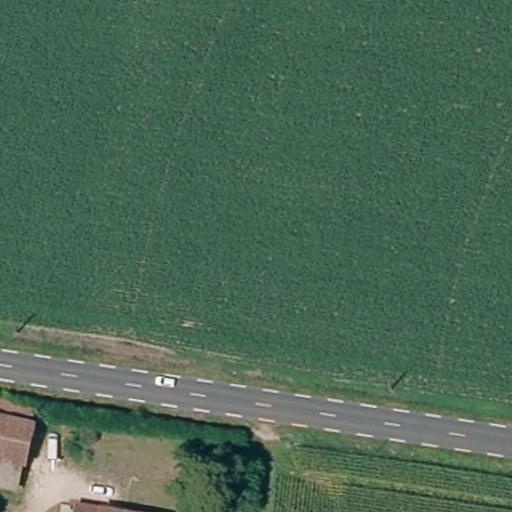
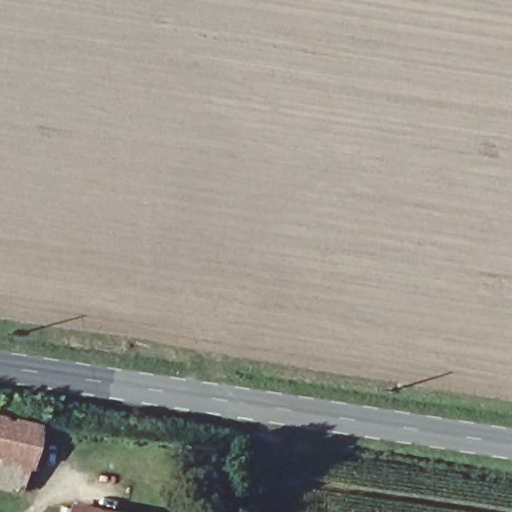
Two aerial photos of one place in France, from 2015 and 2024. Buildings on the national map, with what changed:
unchanged [(31,415),(18,470),(0,465),(0,408),(31,415)]
unchanged [(87,512),(78,512),(78,511),(87,512)]

